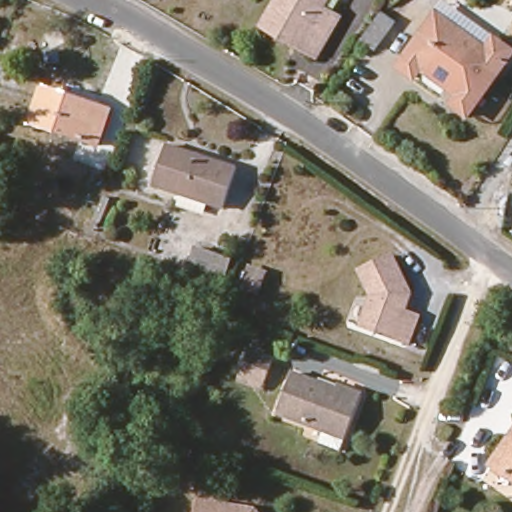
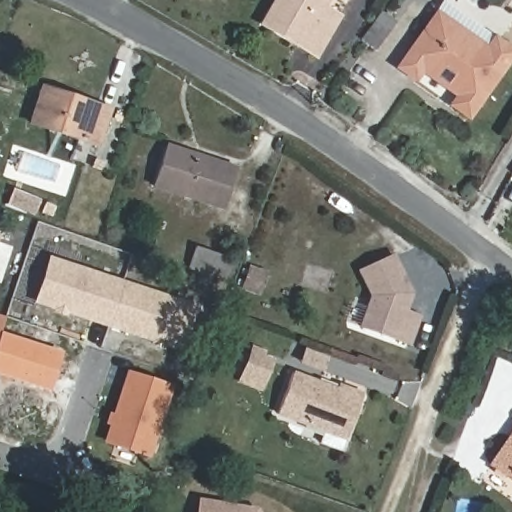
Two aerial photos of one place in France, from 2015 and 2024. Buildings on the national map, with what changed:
unchanged [(325,0),(320,10),(337,19),(314,59),(296,48),(259,27),(275,0),(325,0)]
unchanged [(455,102),(461,93),(424,66),(417,76),(402,65),(439,12),(447,2),(497,37),(512,48),(512,55),(470,114),(455,102)]
unchanged [(373,51),(359,42),(379,15),(393,25),(373,51)]
unchanged [(95,148),(28,126),(40,90),(107,112),(95,148)]
unchanged [(151,189),(165,147),(182,153),(197,158),(234,170),(220,212),(151,189)]
unchanged [(512,167),(512,172),(510,171),(512,167)]
new [(164,347),(163,351),(149,346),(150,342),(67,315),(67,317),(51,312),(51,310),(33,304),(49,256),(199,306),(182,354),(164,347)]
unchanged [(410,296),(404,313),(418,318),(408,347),(357,328),(369,297),(357,273),(391,257),(410,296)]
unchanged [(266,295),(251,290),(258,270),(273,276),(266,295)]
new [(0,375),(0,315),(5,316),(1,332),(62,351),(49,392),(0,375)]
unchanged [(269,391),(247,382),(260,350),(271,354),(269,358),(281,363),(269,391)]
new [(149,457),(102,443),(126,371),(173,386),(149,457)]
unchanged [(344,437),(343,436),(338,449),(316,441),(321,428),(275,411),(290,371),(318,381),(320,377),(361,392),(344,437)]
unchanged [(512,429),(512,479),(506,475),(489,462),(512,429)]
unchanged [(197,498),(253,507),(256,512),(195,512),(197,498)]

